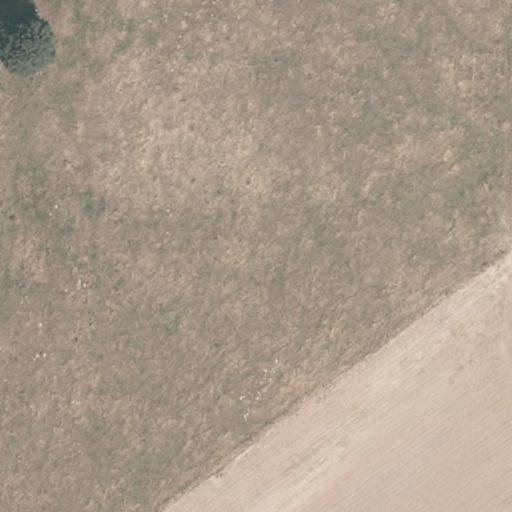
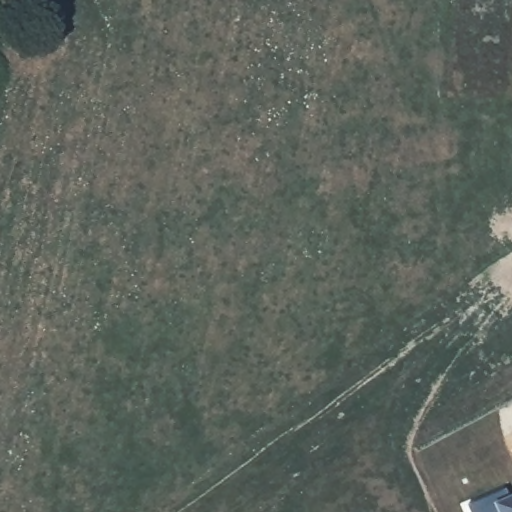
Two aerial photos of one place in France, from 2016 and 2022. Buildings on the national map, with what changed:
new [(504,489),(506,497),(512,495),(512,512),(468,512),(465,505),(504,489)]

